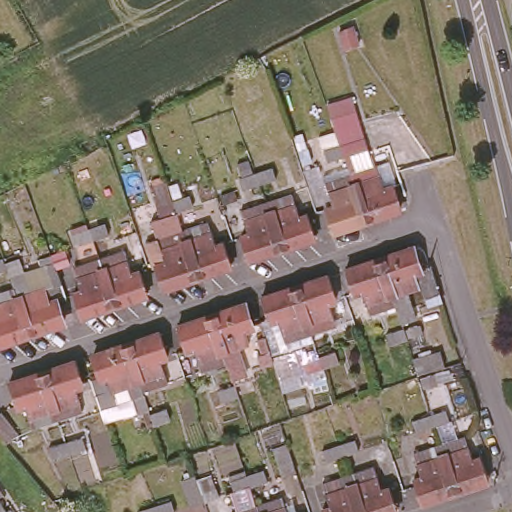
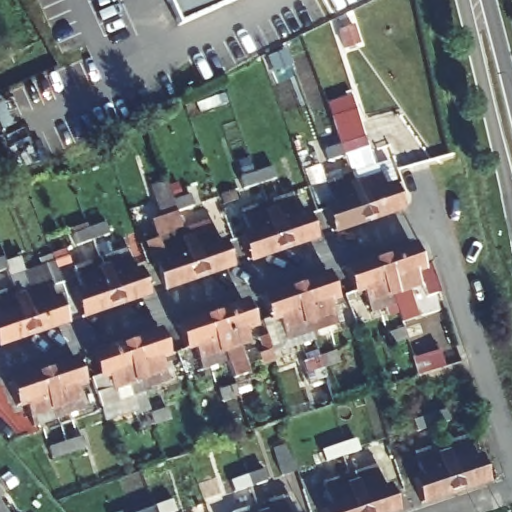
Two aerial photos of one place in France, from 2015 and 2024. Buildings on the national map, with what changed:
new [(172,0),(235,0),(182,24),(172,0)]
unchanged [(350,108),(363,155),(344,161),(341,163),(326,115),(350,108)]
unchanged [(363,220),(344,161),(363,155),(372,153),(385,149),(392,172),(385,174),(397,209),(363,220)]
unchanged [(363,220),(330,232),(318,194),(328,192),(320,169),(341,163),(344,161),(363,220)]
unchanged [(286,181),(293,204),(301,201),(313,237),(280,248),(279,249),(260,189),(286,181)]
unchanged [(176,216),(196,277),(162,288),(155,266),(151,268),(143,244),(155,239),(148,221),(158,218),(147,189),(165,183),(176,216)]
unchanged [(279,249),(246,259),(233,223),(241,220),(234,198),(260,189),(279,249)]
unchanged [(202,208),(210,230),(218,228),(230,265),(224,267),(196,277),(176,216),(202,208)]
unchanged [(117,242),(125,264),(133,261),(145,299),(112,310),(92,249),(117,242)]
unchanged [(395,315),(376,258),(377,258),(409,248),(418,278),(430,273),(440,301),(425,307),(417,284),(397,290),(408,327),(400,330),(395,315)]
unchanged [(112,310),(110,310),(77,322),(65,283),(73,280),(66,258),(92,249),(112,310)]
unchanged [(370,323),(363,302),(353,304),(342,269),(376,258),(395,315),(370,323)]
unchanged [(25,272),(32,291),(53,284),(48,270),(56,268),(66,298),(58,300),(66,322),(58,324),(31,334),(12,276),(25,272)]
unchanged [(31,334),(2,344),(0,344),(0,274),(10,270),(12,276),(31,334)]
unchanged [(292,286),(320,277),(325,274),(338,310),(331,312),(337,334),(311,343),(292,286)]
unchanged [(285,351),(278,330),(269,333),(258,298),(263,295),(292,286),(311,343),(285,351)]
unchanged [(266,351),(258,353),(254,339),(232,346),(237,360),(225,364),(208,314),(241,303),(247,324),(257,321),(266,351)]
unchanged [(202,379),(195,358),(185,361),(174,325),(207,314),(208,314),(225,364),(227,371),(202,379)]
unchanged [(139,393),(122,343),(150,334),(157,332),(164,354),(165,353),(170,367),(160,369),(167,391),(141,399),(139,393)]
unchanged [(97,407),(87,379),(95,376),(96,375),(90,354),(93,353),(122,343),(139,393),(128,397),(123,382),(99,389),(104,404),(97,407)]
unchanged [(38,371),(71,360),(78,382),(80,381),(85,395),(76,398),(83,420),(58,428),(38,371)]
unchanged [(31,437),(25,415),(16,418),(5,383),(36,372),(38,371),(58,428),(31,437)]
unchanged [(430,415),(448,409),(452,419),(433,424),(417,430),(415,420),(430,415)]
unchanged [(467,434),(475,459),(482,457),(490,480),(457,491),(441,443),(467,434)]
unchanged [(338,445),(356,439),(359,449),(342,454),(325,459),(322,450),(338,445)]
unchanged [(457,491),(421,503),(415,479),(423,477),(415,452),(441,443),(457,491)]
unchanged [(373,466),(382,489),(390,487),(398,511),(393,512),(362,512),(350,474),(373,466)]
unchanged [(249,474),(264,469),(267,479),(252,484),(235,490),(231,480),(249,474)]
unchanged [(362,512),(322,512),(321,510),(330,507),(322,483),(350,474),(362,512)]
unchanged [(283,496),(289,512),(261,512),(258,504),(283,496)]
unchanged [(171,499),(175,510),(169,512),(138,512),(137,511),(153,506),(171,499)]
unchanged [(261,512),(233,512),(258,504),(261,512)]

